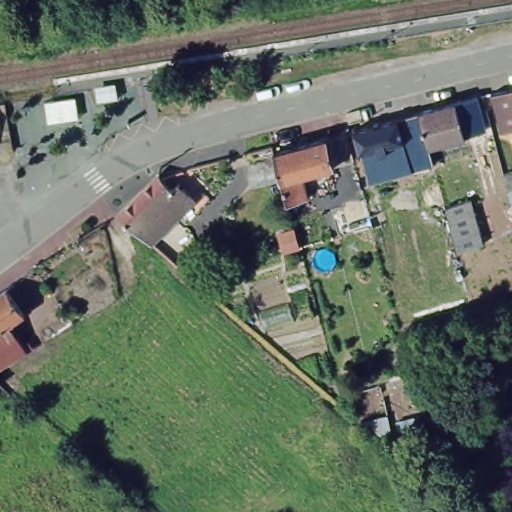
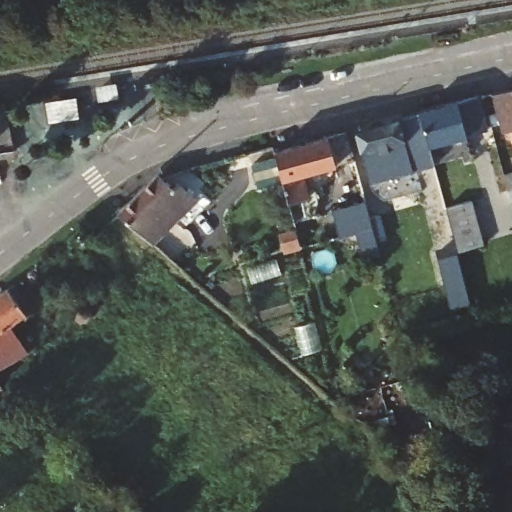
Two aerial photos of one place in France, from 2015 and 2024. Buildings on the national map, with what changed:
unchanged [(512,91),(512,131),(493,135),(482,97),(512,91)]
unchanged [(411,169),(412,172),(370,184),(362,155),(357,156),(349,128),(397,117),(417,112),(476,99),(485,136),(428,150),(433,165),(411,169)]
unchanged [(345,129),(355,162),(302,175),(308,201),(285,207),(269,151),(345,129)]
unchanged [(512,172),(512,203),(503,174),(512,172)]
unchanged [(160,179),(170,187),(173,182),(193,197),(155,250),(125,222),(160,179)]
unchanged [(472,199),(485,247),(459,256),(445,207),(472,199)]
new [(379,216),(386,240),(375,243),(379,256),(362,261),(355,235),(337,240),(330,211),(364,202),(368,218),(379,216)]
unchanged [(30,315),(15,326),(33,351),(47,340),(55,350),(15,378),(12,381),(0,367),(0,296),(10,290),(30,315)]
unchanged [(7,392),(0,397),(0,386),(2,387),(7,392)]

